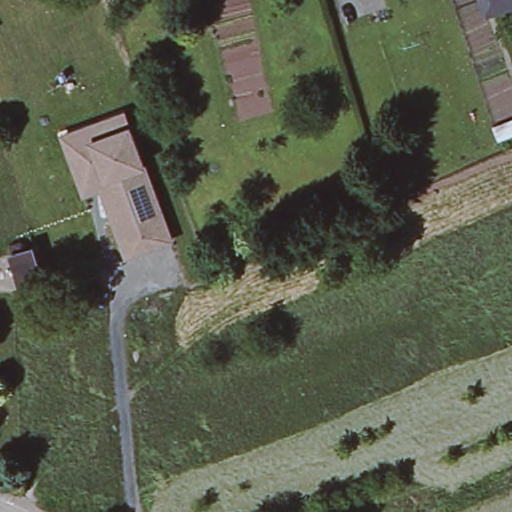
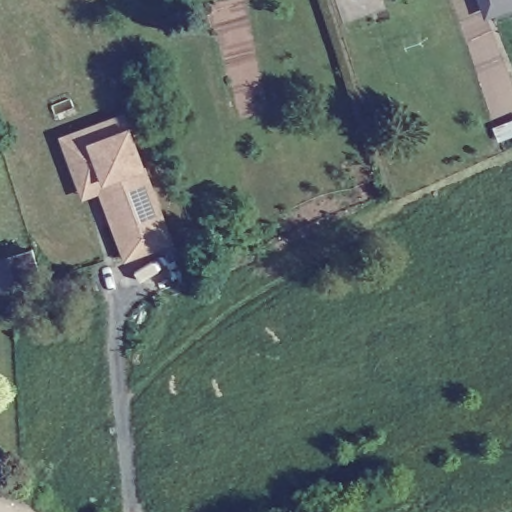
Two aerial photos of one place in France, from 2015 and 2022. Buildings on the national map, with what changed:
unchanged [(61,136),(122,113),(170,239),(125,256),(100,188),(83,194),(61,136)]
unchanged [(35,244),(50,278),(29,287),(15,253),(35,244)]

